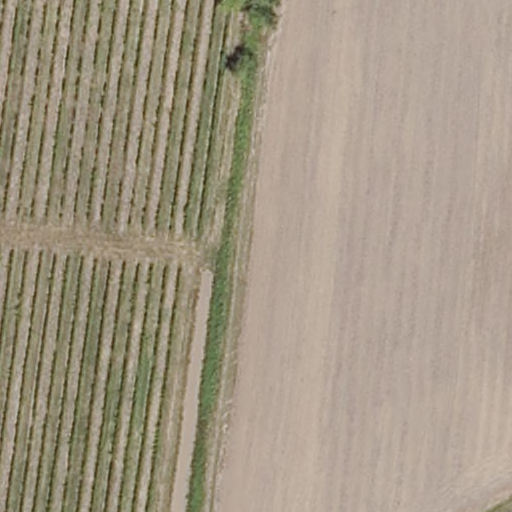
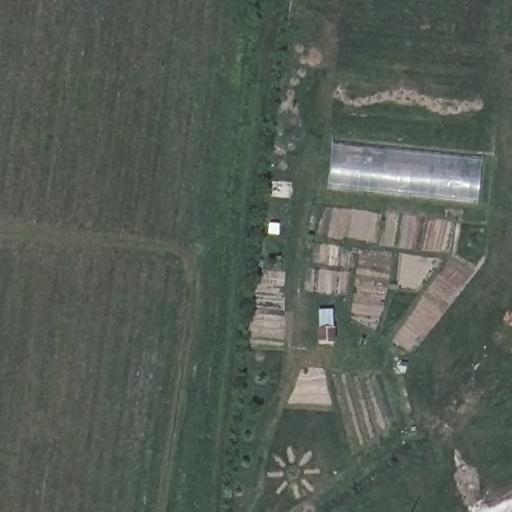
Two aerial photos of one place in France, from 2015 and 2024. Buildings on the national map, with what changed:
new [(332,143),(482,159),(477,204),(327,191),(332,143)]

